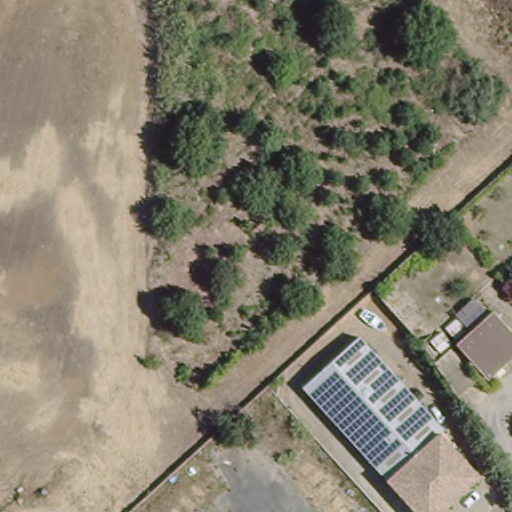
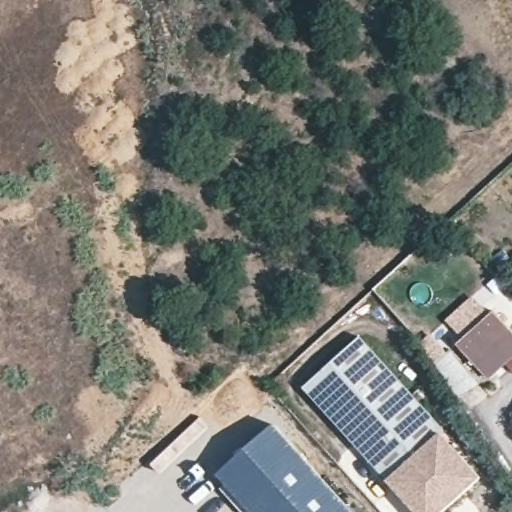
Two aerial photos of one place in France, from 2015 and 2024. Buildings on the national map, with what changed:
unchanged [(512,325),(512,362),(494,379),(462,346),(499,312),(512,325)]
unchanged [(306,389),(363,336),(485,479),(444,512),(417,512),(306,389)]
unchanged [(482,378),(462,397),(440,364),(456,350),(482,378)]
new [(199,416),(209,426),(160,473),(151,464),(199,416)]
new [(273,422),(354,512),(242,512),(221,488),(225,484),(216,475),(273,422)]

